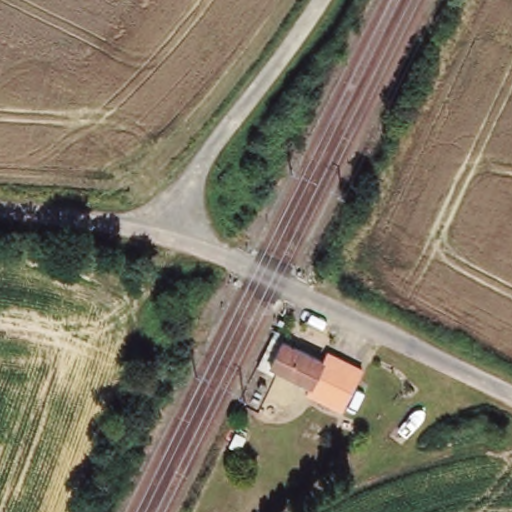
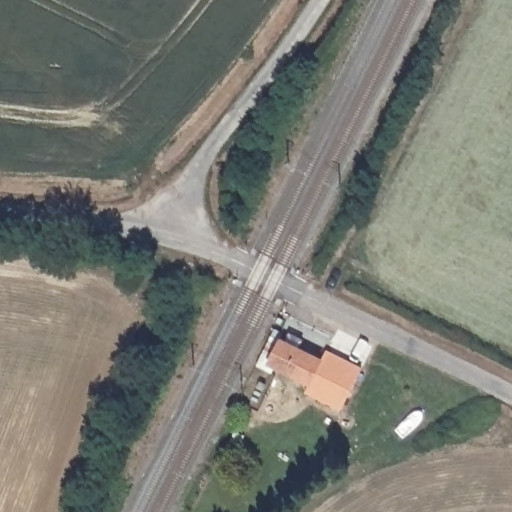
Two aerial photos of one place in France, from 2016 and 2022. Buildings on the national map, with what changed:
unchanged [(279,368),(275,375),(261,368),(267,351),(276,356),(285,341),(328,362),(315,384),(279,368)]
unchanged [(328,362),(330,351),(366,367),(343,412),(307,399),(315,384),(328,362)]

